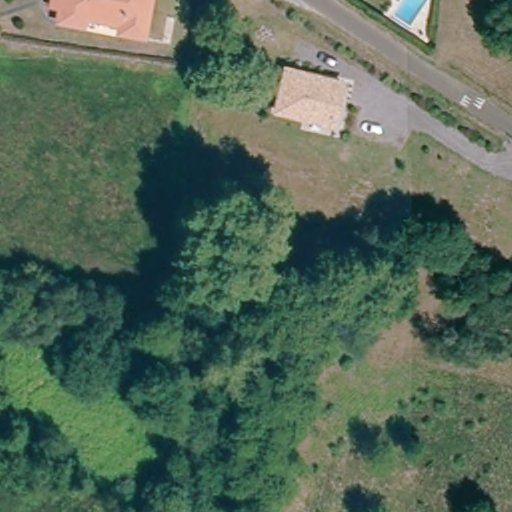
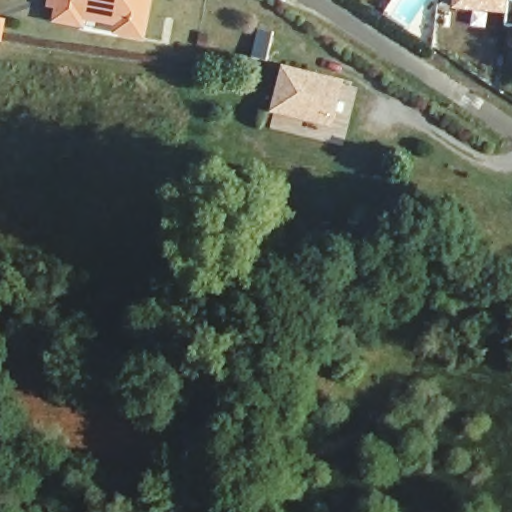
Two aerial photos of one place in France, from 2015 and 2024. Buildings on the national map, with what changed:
unchanged [(83,39),(84,32),(58,27),(61,13),(52,12),(55,0),(149,0),(142,42),(121,38),(119,46),(83,39)]
new [(451,0),(509,0),(508,17),(490,15),(487,30),(470,28),(471,13),(450,12),(451,0)]
unchanged [(342,78),(333,120),(277,107),(286,65),(342,78)]

